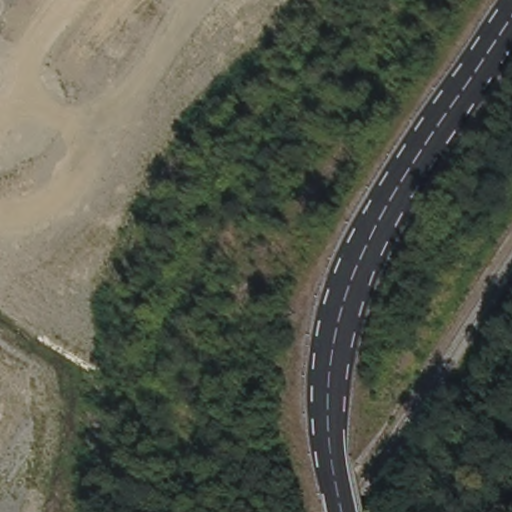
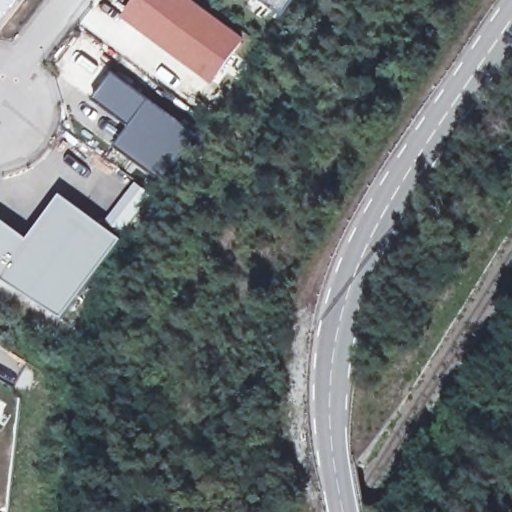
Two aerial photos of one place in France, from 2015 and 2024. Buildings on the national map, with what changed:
new [(0,27),(0,0),(22,0),(0,27)]
new [(125,19),(139,0),(192,0),(247,42),(214,87),(125,19)]
new [(283,20),(258,0),(298,0),(283,20)]
new [(95,98),(115,72),(197,134),(163,181),(116,145),(131,125),(95,98)]
new [(30,241),(63,197),(122,241),(65,319),(0,277),(0,227),(3,222),(30,241)]
new [(2,408),(0,411),(0,406),(2,408)]

